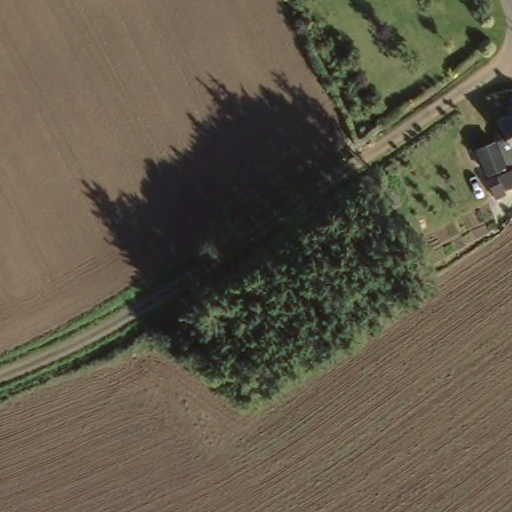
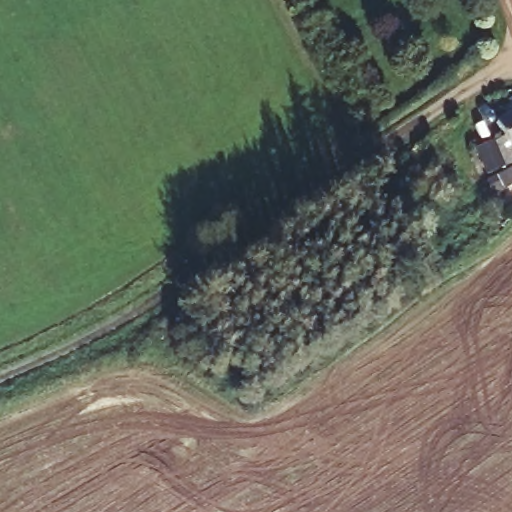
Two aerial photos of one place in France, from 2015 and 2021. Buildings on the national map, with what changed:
unchanged [(504,150),(488,156),(478,133),(494,126),(504,150)]
unchanged [(512,127),(512,130),(511,127),(512,127)]
unchanged [(512,144),(512,149),(510,145),(512,144)]
unchanged [(512,155),(512,170),(508,159),(512,155)]

